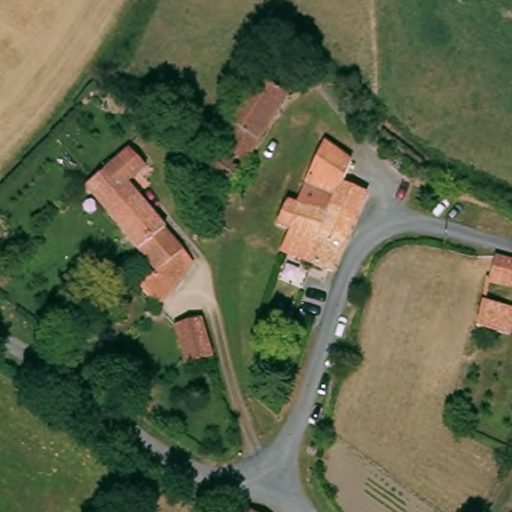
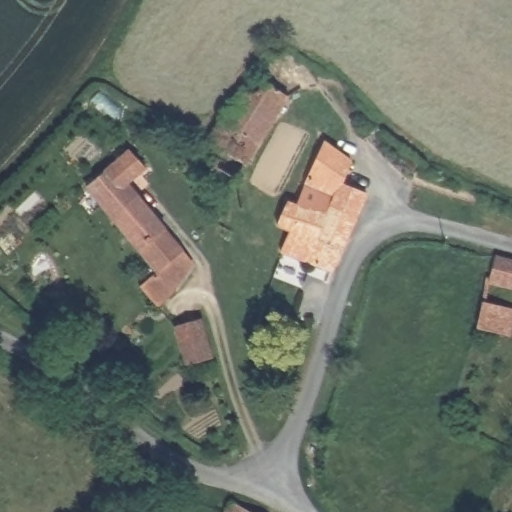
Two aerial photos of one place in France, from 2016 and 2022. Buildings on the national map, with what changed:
unchanged [(294,91),(265,135),(220,110),(241,83),(243,81),(247,75),(252,68),(252,67),(294,91)]
unchanged [(213,130),(219,114),(220,110),(265,135),(264,136),(234,184),(232,188),(210,175),(227,147),(210,136),(213,130)]
unchanged [(329,271),(290,254),(279,249),(288,229),(275,223),(284,203),(292,206),(315,156),(322,142),(347,159),(339,181),(364,190),(354,216),(339,247),(329,271)]
unchanged [(138,160),(144,168),(118,191),(101,172),(129,149),(138,160)]
unchanged [(154,308),(152,305),(139,291),(138,289),(151,273),(101,207),(110,198),(117,205),(121,209),(123,207),(132,199),(164,234),(192,267),(156,309),(154,308)]
unchanged [(507,286),(512,265),(512,288),(507,286)]
unchanged [(185,363),(178,331),(205,323),(205,327),(212,357),(185,363)]
unchanged [(227,501),(250,512),(221,512),(227,501)]

